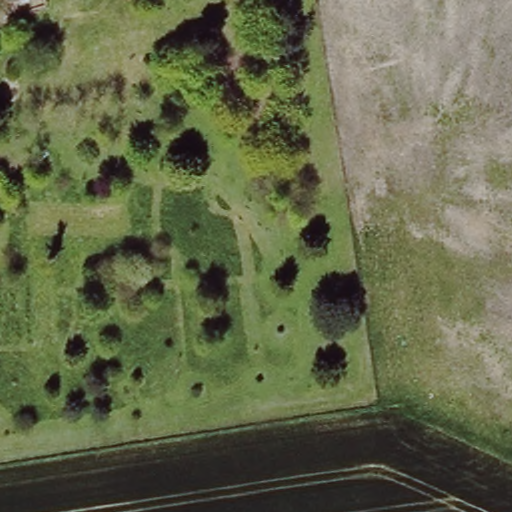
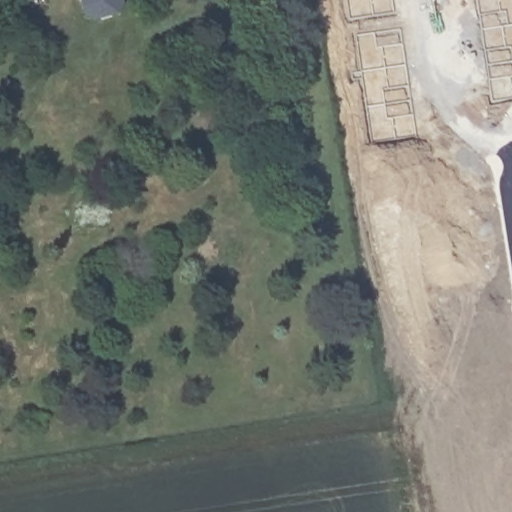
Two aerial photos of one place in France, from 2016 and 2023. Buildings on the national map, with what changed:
new [(95,22),(83,9),(81,0),(123,0),(118,15),(95,22)]

